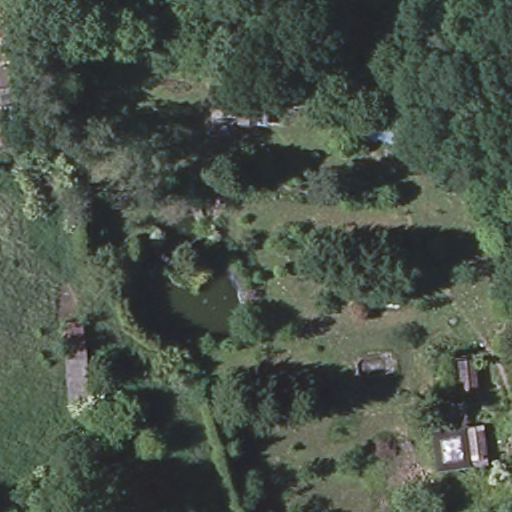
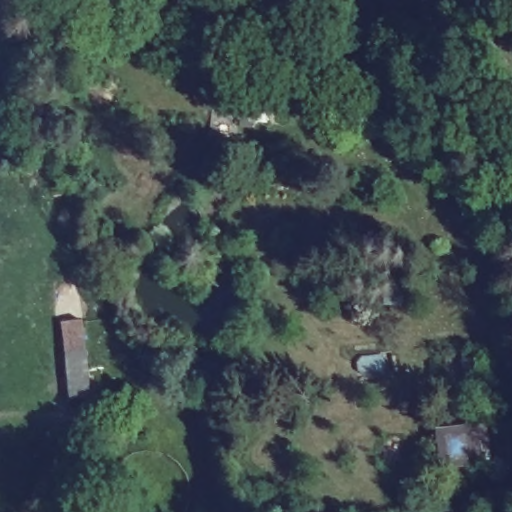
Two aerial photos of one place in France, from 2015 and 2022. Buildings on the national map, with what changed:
unchanged [(0,58),(17,56),(24,90),(6,95),(0,64),(0,58)]
unchanged [(219,116),(220,94),(266,107),(265,130),(219,116)]
unchanged [(60,156),(61,180),(30,181),(29,157),(60,156)]

